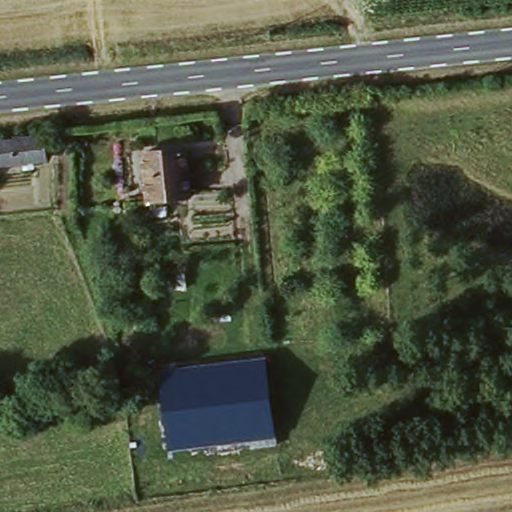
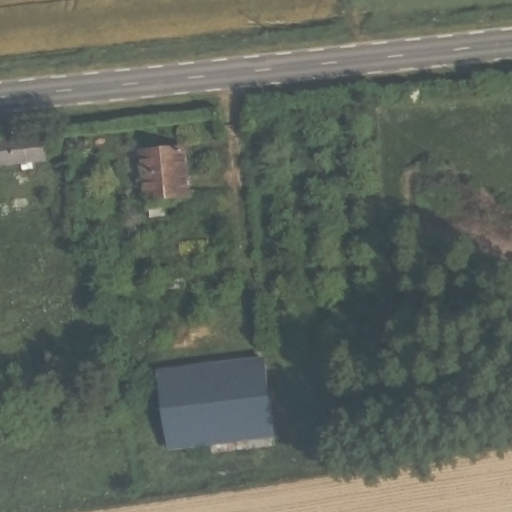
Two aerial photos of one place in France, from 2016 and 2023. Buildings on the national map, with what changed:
unchanged [(44,147),(46,165),(0,169),(0,150),(44,147)]
unchanged [(142,154),(185,151),(191,199),(149,204),(142,154)]
unchanged [(161,375),(267,364),(276,439),(170,450),(161,375)]

